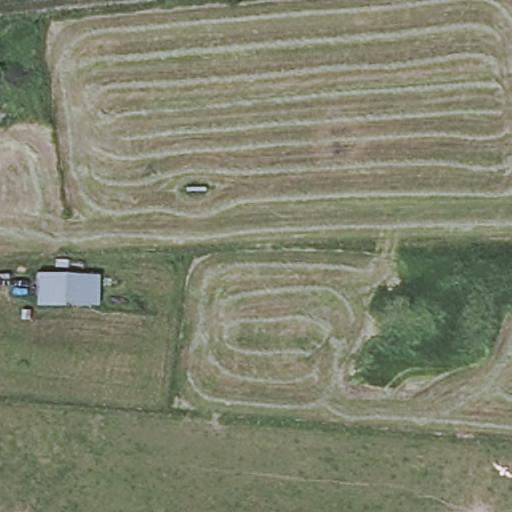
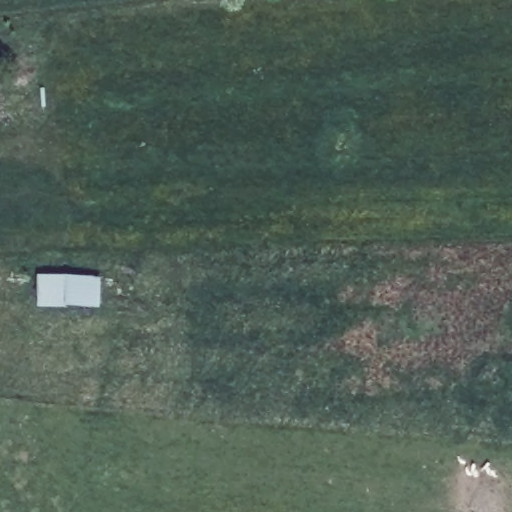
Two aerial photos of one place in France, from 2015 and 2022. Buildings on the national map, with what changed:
unchanged [(65,276),(66,308),(32,306),(34,270),(65,276)]
unchanged [(99,277),(99,307),(66,308),(65,276),(99,277)]

